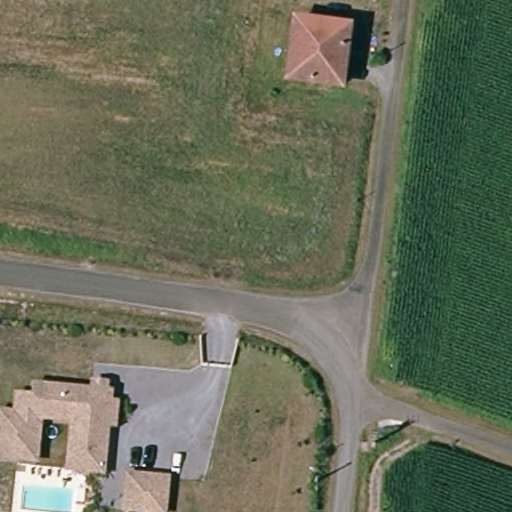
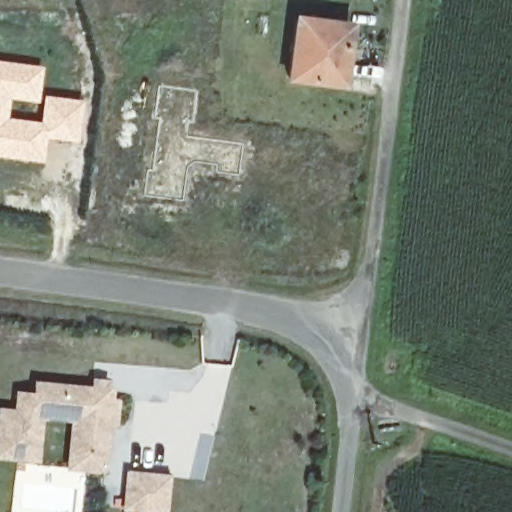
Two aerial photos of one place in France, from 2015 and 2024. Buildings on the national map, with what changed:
unchanged [(333,84),(290,79),(298,21),(351,28),(349,49),(344,85),(333,84)]
new [(34,99),(6,95),(3,121),(43,126),(45,100),(78,105),(74,138),(42,134),(38,159),(0,154),(0,65),(38,70),(34,99)]
unchanged [(117,404),(114,427),(108,426),(105,451),(86,450),(87,438),(74,421),(41,418),(36,462),(0,459),(0,418),(0,413),(16,415),(18,396),(34,398),(36,386),(95,392),(96,382),(108,383),(106,393),(111,394),(110,403),(117,404)]
unchanged [(104,474),(69,470),(74,421),(87,438),(86,450),(105,451),(104,474)]
unchanged [(165,510),(125,506),(129,471),(168,475),(165,510)]

